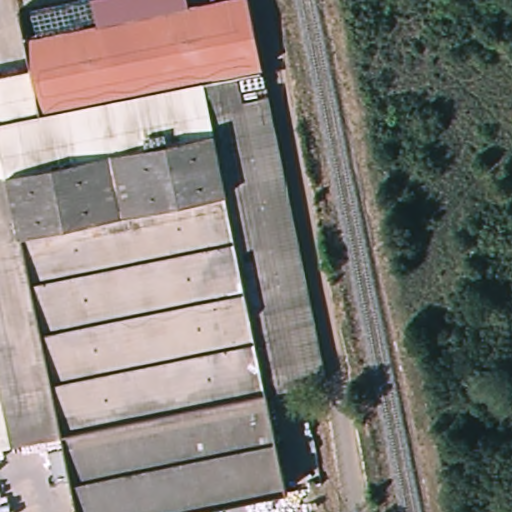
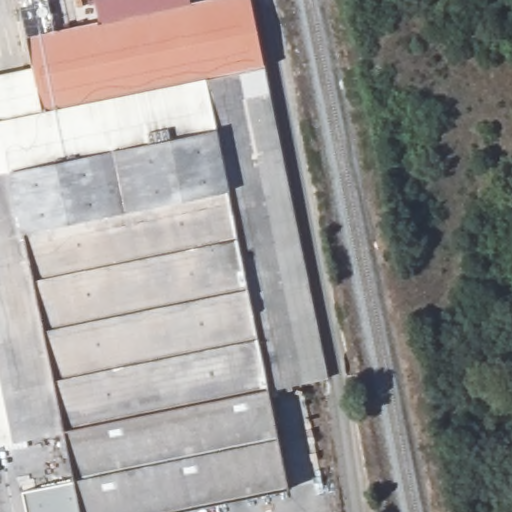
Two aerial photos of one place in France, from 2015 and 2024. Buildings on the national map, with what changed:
unchanged [(95,0),(189,0),(190,3),(202,0),(250,0),(262,55),(264,68),(327,380),(263,394),(209,125),(3,168),(0,169),(0,74),(32,69),(25,35),(99,19),(95,0)]
unchanged [(57,431),(3,168),(209,125),(263,394),(57,431)]
unchanged [(0,405),(0,169),(3,168),(57,431),(7,439),(0,405)]
unchanged [(282,486),(154,512),(74,512),(57,431),(263,394),(282,486)]
unchanged [(0,441),(0,405),(7,439),(0,441)]
new [(21,492),(68,482),(74,512),(25,512),(21,492)]

